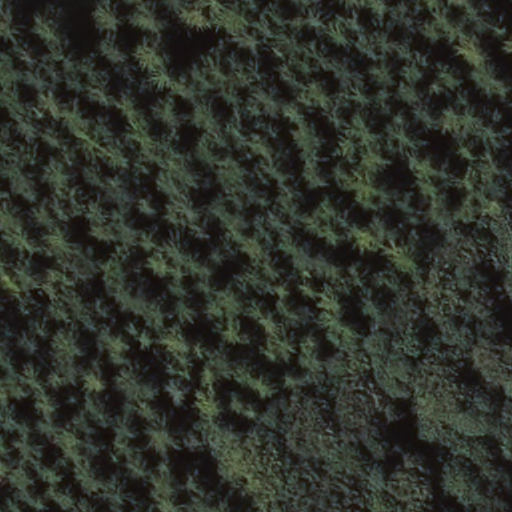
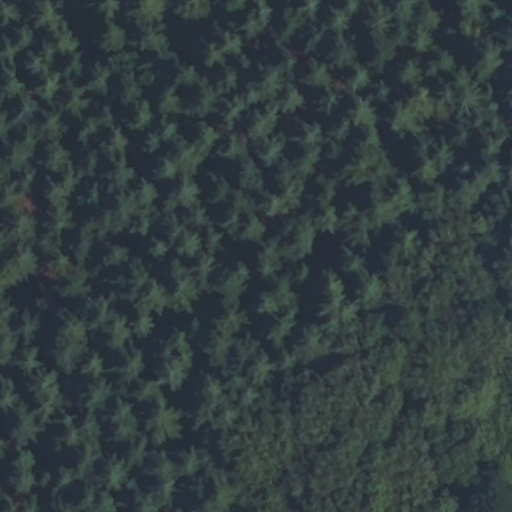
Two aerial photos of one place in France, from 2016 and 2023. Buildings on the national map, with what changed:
[]

